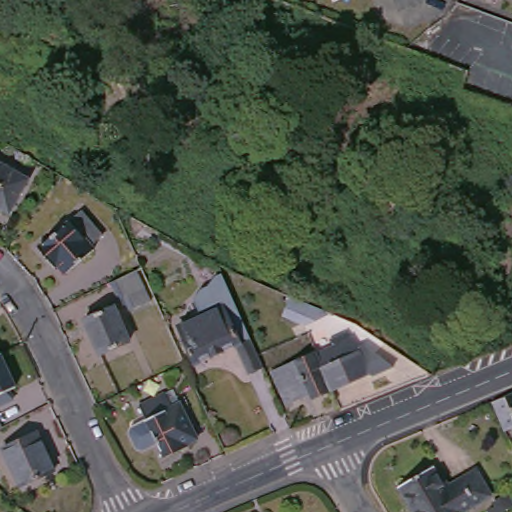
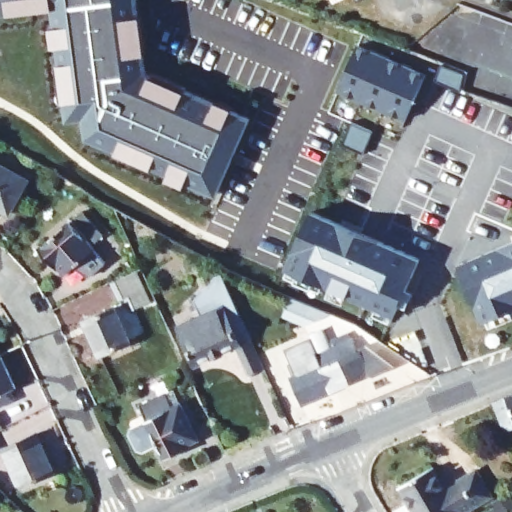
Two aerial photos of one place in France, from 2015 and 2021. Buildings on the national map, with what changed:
new [(86,144),(82,121),(66,124),(52,11),(0,17),(0,0),(140,0),(149,68),(155,74),(249,119),(219,197),(86,144)]
unchanged [(333,0),(348,0),(335,5),(333,0)]
unchanged [(498,0),(508,0),(507,1),(498,0)]
unchanged [(508,0),(512,0),(512,1),(507,1),(508,0)]
new [(357,42),(425,73),(405,120),(337,88),(357,42)]
unchanged [(29,185),(11,217),(0,212),(0,169),(29,185)]
new [(392,315),(285,269),(311,211),(420,258),(392,315)]
unchanged [(95,238),(83,248),(85,252),(57,276),(51,269),(47,271),(31,251),(74,215),(95,238)]
new [(458,262),(512,240),(512,310),(482,323),(458,262)]
unchanged [(137,275),(152,305),(131,315),(125,303),(121,304),(112,287),(137,275)]
unchanged [(247,379),(235,352),(197,369),(179,330),(202,319),(202,314),(214,308),(216,312),(222,309),(212,285),(225,280),(265,371),(247,379)]
unchanged [(130,345),(102,358),(86,323),(115,310),(130,345)]
unchanged [(333,336),(310,326),(316,312),(321,314),(340,322),(333,336)]
unchanged [(333,393),(317,357),(333,350),(330,343),(347,336),(351,341),(353,342),(358,352),(365,350),(393,371),(375,380),(370,378),(334,394),(333,393)]
unchanged [(0,354),(0,350),(2,353),(0,354)]
unchanged [(16,385),(0,393),(0,354),(2,353),(16,385)]
unchanged [(333,393),(312,401),(311,398),(287,409),(272,376),(317,357),(333,393)]
unchanged [(199,437),(191,441),(190,444),(167,456),(159,441),(145,448),(139,446),(132,432),(134,425),(147,418),(141,406),(175,389),(199,437)]
unchanged [(496,406),(512,400),(512,432),(506,434),(498,420),(496,406)]
unchanged [(1,412),(7,426),(0,430),(0,413),(1,412)]
unchanged [(60,470),(25,486),(8,447),(43,431),(60,470)]
unchanged [(488,494),(459,512),(412,512),(396,486),(432,465),(443,485),(473,469),(488,494)]

